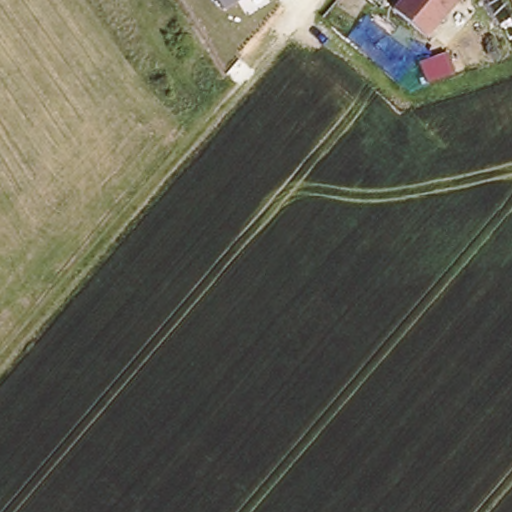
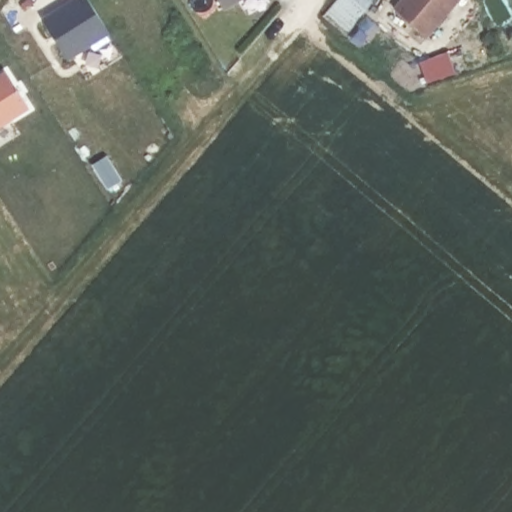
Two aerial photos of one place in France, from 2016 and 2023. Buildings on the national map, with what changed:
new [(69,61),(44,22),(79,0),(88,0),(110,35),(69,61)]
unchanged [(226,10),(220,0),(242,0),(226,10)]
unchanged [(401,0),(457,0),(425,39),(393,10),(401,0)]
new [(448,54),(454,73),(427,82),(420,64),(448,54)]
new [(6,74),(28,110),(0,127),(0,77),(6,74)]

